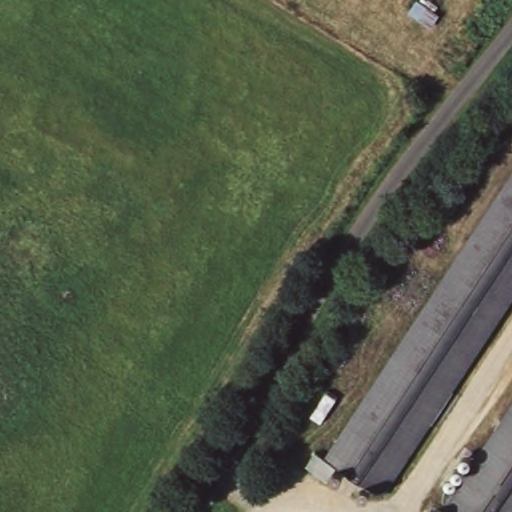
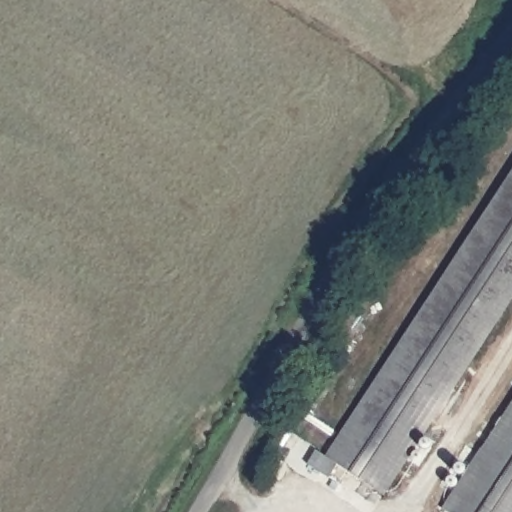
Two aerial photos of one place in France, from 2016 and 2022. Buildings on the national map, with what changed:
unchanged [(382,493),(325,453),(458,258),(512,178),(512,301),(462,374),(382,493)]
unchanged [(512,404),(512,512),(458,512),(446,503),(512,404)]

